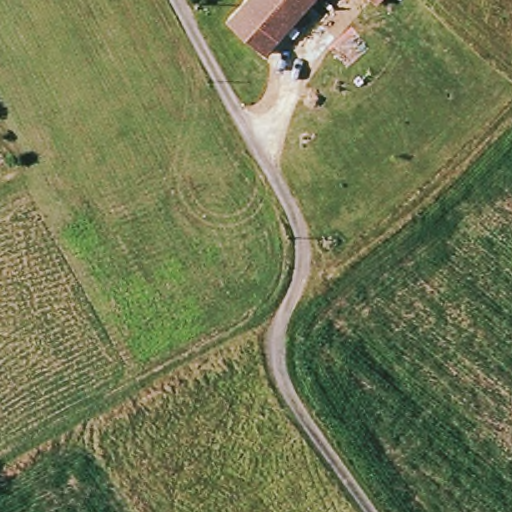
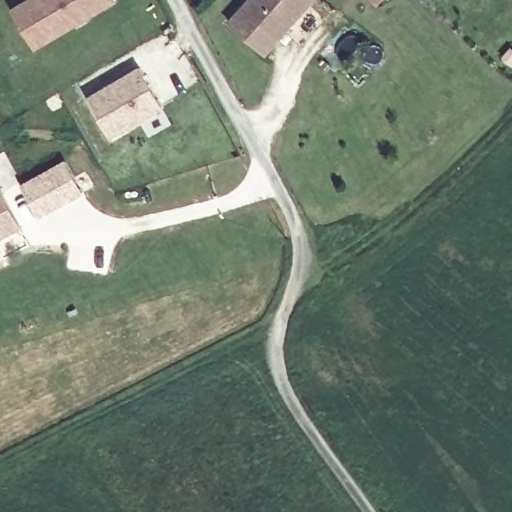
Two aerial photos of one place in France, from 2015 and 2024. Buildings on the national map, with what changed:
new [(9,9),(24,0),(117,0),(118,2),(35,50),(9,9)]
unchanged [(228,18),(245,0),(315,0),(267,54),(228,18)]
new [(377,6),(371,0),(382,0),(377,6)]
new [(140,67),(164,108),(111,139),(88,97),(140,67)]
new [(83,192),(39,216),(23,186),(66,162),(83,192)]
new [(23,227),(0,240),(0,185),(23,227)]

